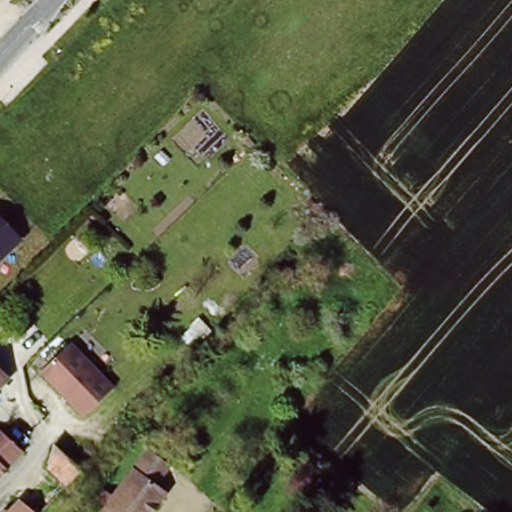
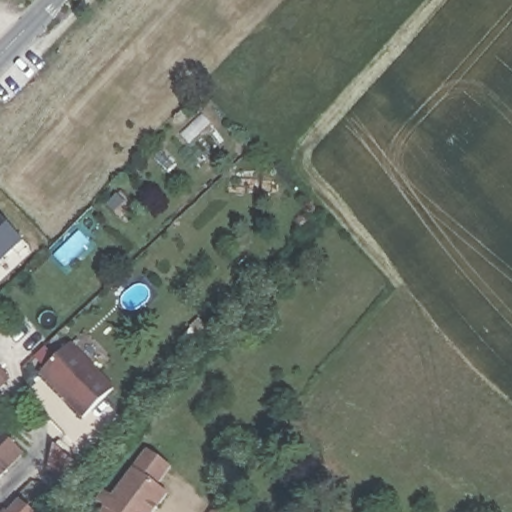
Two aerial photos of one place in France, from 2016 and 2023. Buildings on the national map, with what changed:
unchanged [(0,266),(0,221),(24,239),(0,266)]
unchanged [(70,342),(122,396),(92,425),(40,371),(70,342)]
unchanged [(0,387),(0,366),(10,378),(0,387)]
unchanged [(27,459),(0,485),(0,435),(2,434),(27,459)]
unchanged [(55,464),(61,442),(70,434),(78,443),(71,451),(88,468),(78,478),(75,482),(55,464)]
unchanged [(143,446),(167,465),(155,484),(167,494),(156,512),(95,512),(143,446)]
unchanged [(0,505),(2,504),(5,506),(17,495),(32,510),(29,512),(0,512),(0,505)]

